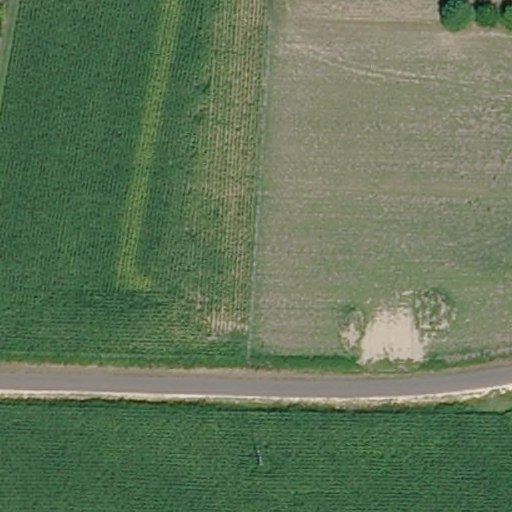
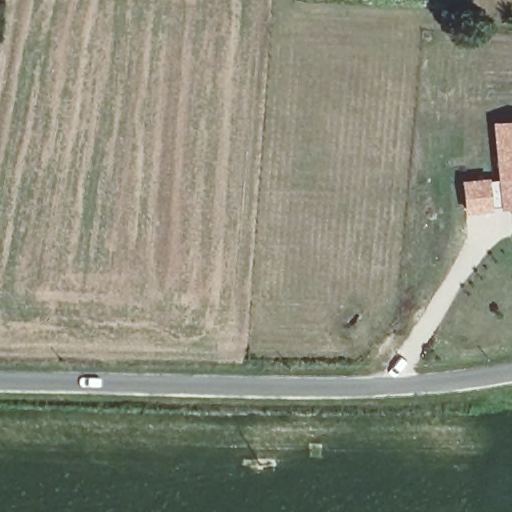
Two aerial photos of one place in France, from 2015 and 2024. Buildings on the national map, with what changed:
new [(497,129),(512,128),(512,209),(490,210),(468,212),(466,185),(487,183),(502,182),(497,129)]

